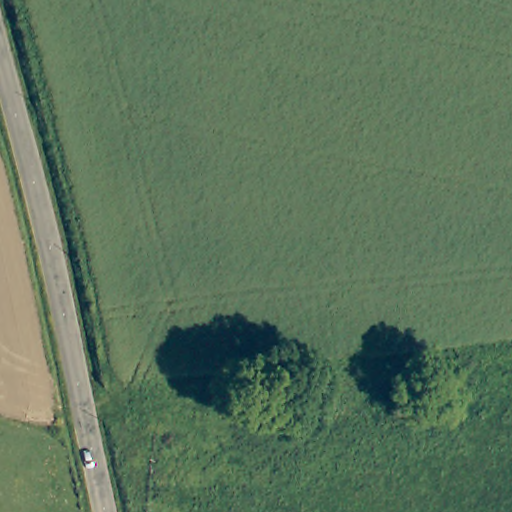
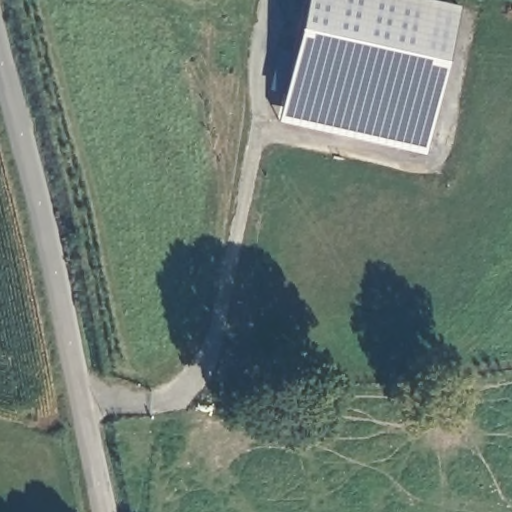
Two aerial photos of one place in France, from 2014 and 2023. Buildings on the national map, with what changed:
new [(279,121),(305,0),(440,0),(458,4),(425,155),(279,121)]

